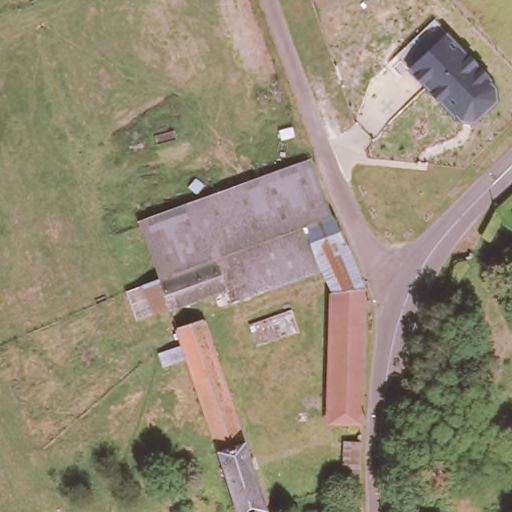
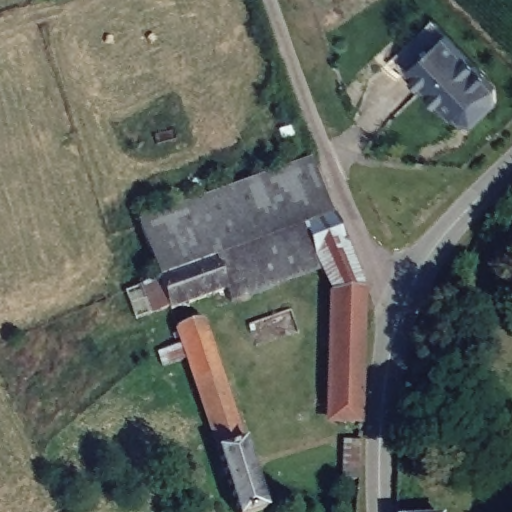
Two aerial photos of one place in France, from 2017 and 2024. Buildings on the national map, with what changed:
unchanged [(447,34),(491,79),(497,87),(498,101),(474,123),(461,121),(455,115),(453,117),(408,71),(447,34)]
unchanged [(138,222),(304,166),(314,198),(259,216),(267,242),(212,260),(156,279),(138,222)]
unchanged [(224,300),(221,291),(212,260),(267,242),(259,216),(314,198),(323,224),(299,232),(314,271),(224,300)]
unchanged [(333,431),(321,418),(324,294),(314,271),(299,232),(323,224),(328,223),(359,301),(354,431),(333,431)]
unchanged [(221,291),(163,310),(163,308),(146,313),(137,285),(156,279),(212,260),(221,291)]
unchanged [(180,347),(209,338),(262,512),(233,512),(218,469),(216,462),(180,347)]
unchanged [(356,446),(369,446),(368,491),(355,495),(356,446)]

